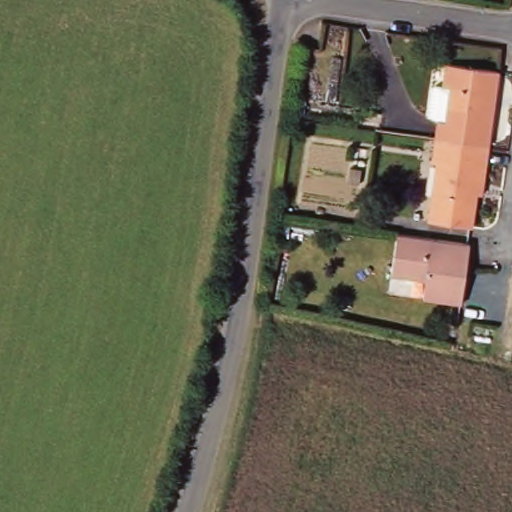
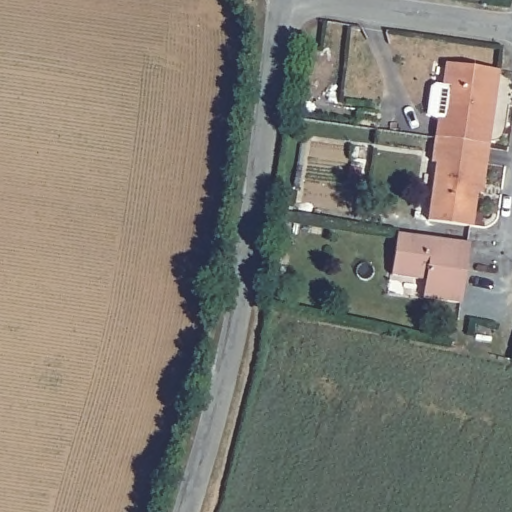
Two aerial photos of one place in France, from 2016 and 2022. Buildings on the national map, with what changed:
unchanged [(441,117),(431,112),(435,86),(439,82),(446,84),(449,62),(501,67),(491,144),(439,137),(441,117)]
unchanged [(439,137),(491,144),(488,169),(485,193),(477,192),(472,227),(432,222),(440,165),(435,164),(439,137)]
unchanged [(470,248),(463,299),(427,295),(430,276),(397,271),(401,238),(470,248)]

